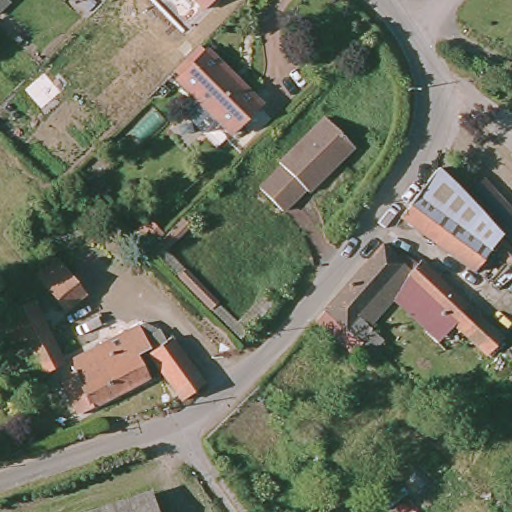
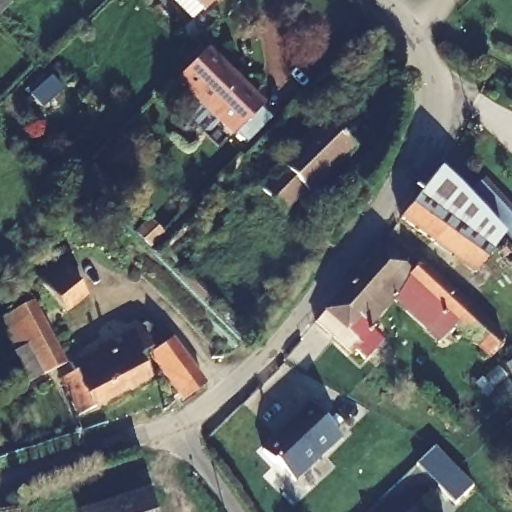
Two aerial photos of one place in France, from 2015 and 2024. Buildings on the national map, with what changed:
unchanged [(204,13),(190,0),(216,0),(204,13)]
unchanged [(224,127),(213,137),(207,137),(190,122),(190,115),(201,104),(182,85),(185,82),(178,76),(203,51),(210,57),(211,56),(265,110),(237,139),(224,127)]
unchanged [(274,169),(320,124),(348,152),(303,197),(300,195),(277,217),(255,194),(277,172),(274,169)]
unchanged [(490,252),(475,272),(400,217),(410,207),(438,169),(457,186),(502,235),(490,252)]
unchanged [(272,302),(238,338),(230,331),(210,311),(177,277),(158,258),(152,251),(182,221),(190,227),(165,251),(185,270),(217,303),(237,323),(264,295),(272,302)]
unchanged [(135,234),(145,222),(160,237),(149,248),(135,234)]
unchanged [(369,370),(363,365),(353,355),(351,358),(315,326),(335,305),(335,304),(383,250),(398,264),(402,261),(403,262),(407,263),(417,270),(420,267),(503,344),(487,360),(455,330),(447,339),(438,347),(425,335),(392,302),(367,331),(382,345),(377,350),(382,355),(369,370)]
unchanged [(35,275),(37,274),(57,258),(85,293),(65,312),(35,275)]
unchanged [(42,381),(27,388),(12,357),(17,355),(0,322),(33,306),(65,370),(42,381)]
unchanged [(148,385),(79,421),(60,384),(75,377),(69,367),(139,331),(145,328),(159,336),(165,347),(171,343),(205,390),(183,406),(149,358),(152,357),(150,353),(137,361),(148,385)]
new [(262,451),(311,403),(344,437),(295,483),(262,451)]
new [(476,487),(457,506),(417,466),(437,448),(476,487)]
unchanged [(156,512),(93,512),(150,493),(156,512)]

